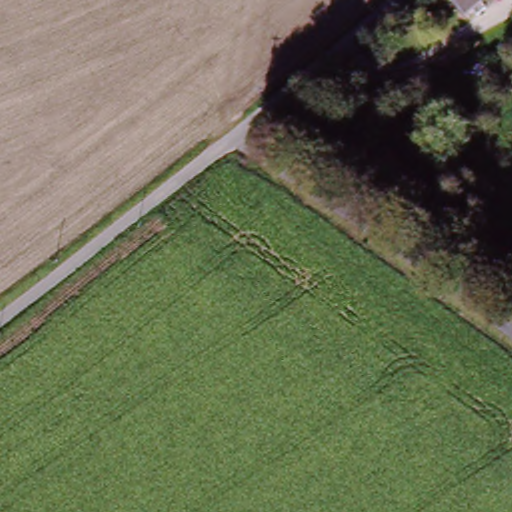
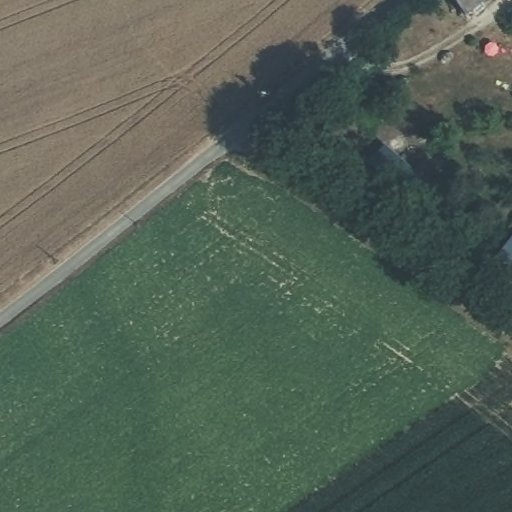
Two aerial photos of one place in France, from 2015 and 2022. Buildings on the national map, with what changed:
unchanged [(450,0),(485,0),(463,17),(450,0)]
unchanged [(408,209),(366,170),(387,147),(430,185),(408,209)]
unchanged [(496,274),(472,254),(486,238),(510,258),(496,274)]

